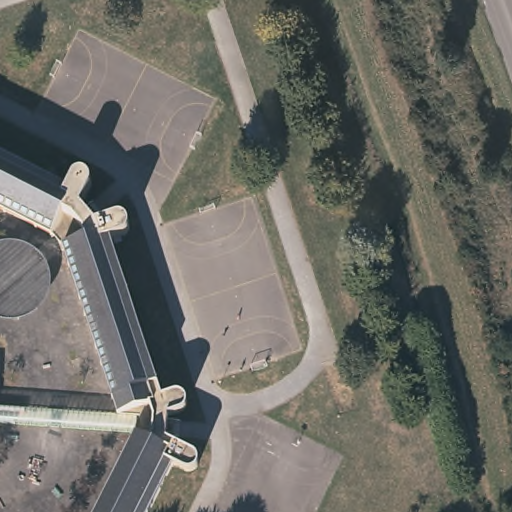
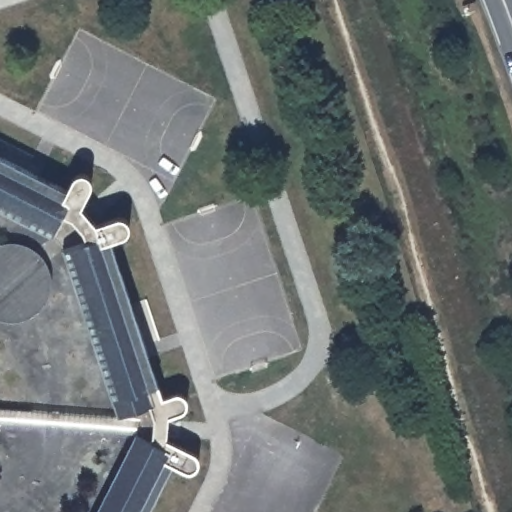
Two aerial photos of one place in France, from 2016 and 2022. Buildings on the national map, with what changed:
unchanged [(0,165),(59,194),(65,182),(67,180),(70,178),(74,177),(77,178),(82,181),(84,184),(85,187),(73,209),(88,228),(113,222),(118,225),(121,229),(121,232),(119,235),(113,239),(103,243),(155,401),(169,397),(174,399),(178,403),(179,405),(178,410),(175,415),(162,419),(161,443),(163,445),(186,456),(190,463),(189,468),(187,472),(184,474),(178,473),(166,467),(144,512),(93,512),(132,436),(0,427),(0,405),(112,404),(56,235),(0,207),(0,165)]
unchanged [(22,243),(36,249),(47,260),(54,281),(47,303),(24,322),(0,324),(0,243),(22,243)]

